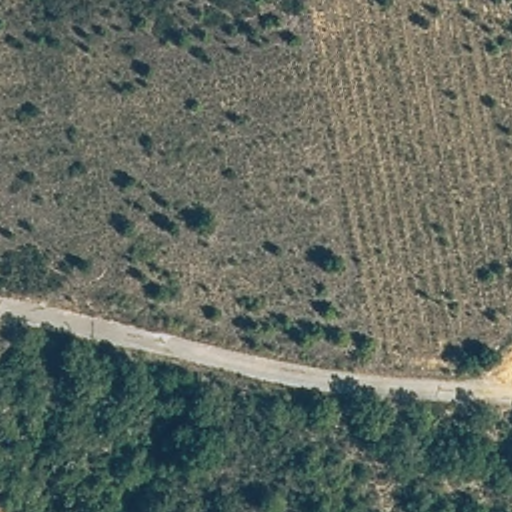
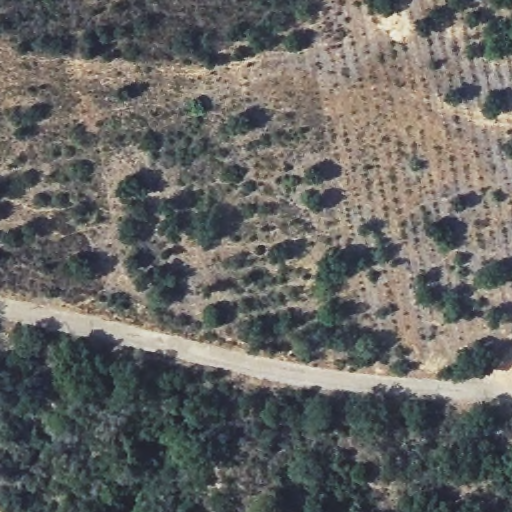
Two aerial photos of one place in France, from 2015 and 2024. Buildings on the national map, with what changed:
unchanged [(372,404),(400,400),(402,417),(375,424),(372,404)]

